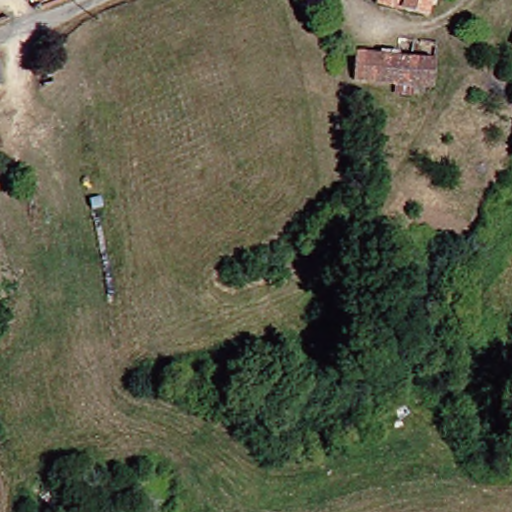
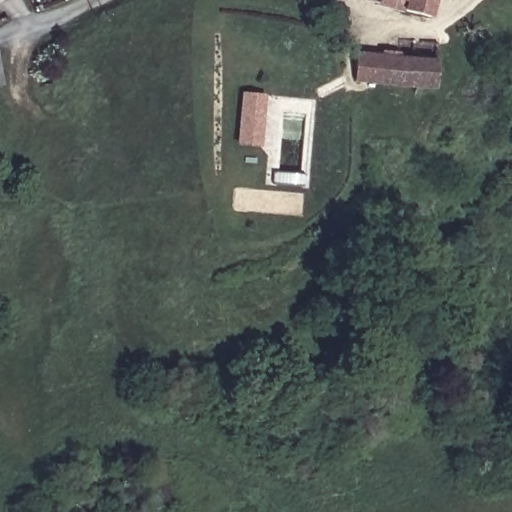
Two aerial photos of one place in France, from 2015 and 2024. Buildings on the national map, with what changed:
unchanged [(379,0),(433,0),(431,9),(404,4),(379,0)]
unchanged [(432,93),(351,86),(353,58),(434,60),(432,93)]
new [(243,91),(268,94),(263,148),(238,145),(243,91)]

